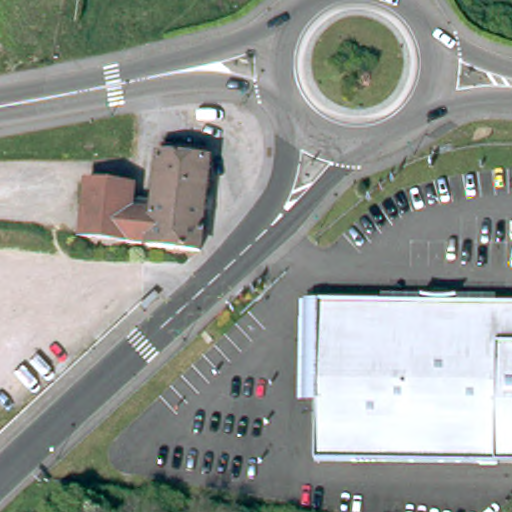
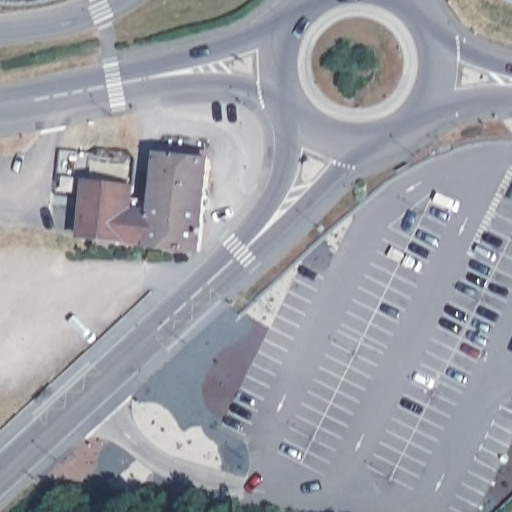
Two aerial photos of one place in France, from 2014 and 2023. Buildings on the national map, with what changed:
unchanged [(159,153),(210,158),(206,203),(154,197),(159,153)]
unchanged [(128,242),(83,236),(88,181),(133,186),(131,195),(131,208),(128,242)]
unchanged [(128,242),(131,208),(153,210),(154,197),(206,203),(201,250),(128,242)]
demolished [(311,462),(313,346),(304,344),(309,322),(312,323),(314,301),(427,303),(427,299),(444,299),(446,303),(512,303),(512,463),(311,462)]

